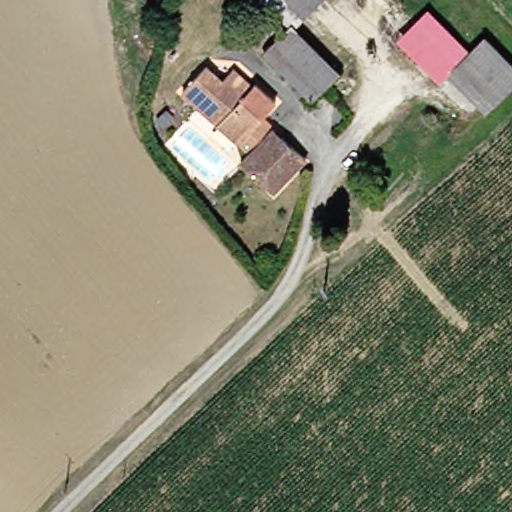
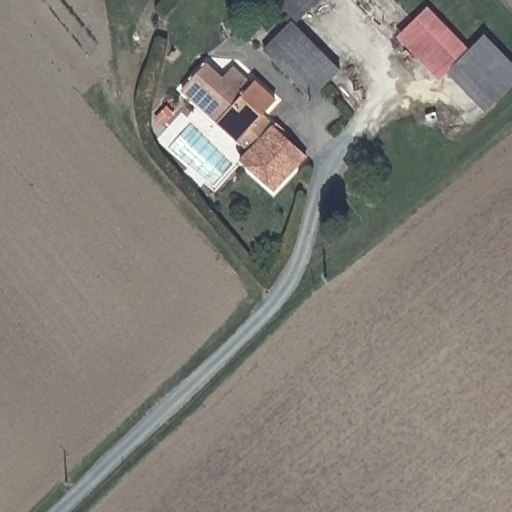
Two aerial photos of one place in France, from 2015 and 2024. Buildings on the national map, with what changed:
unchanged [(275,0),(330,0),(298,24),(275,0)]
unchanged [(448,79),(410,39),(437,12),(477,48),(455,71),(448,79)]
unchanged [(343,73),(312,102),(268,53),(298,24),(343,73)]
unchanged [(455,71),(477,48),(490,33),(512,54),(512,88),(502,99),(493,109),(486,101),(455,71)]
unchanged [(286,106),(273,119),(313,164),(281,193),(250,160),(255,156),(190,85),(216,63),(232,79),(250,64),(286,106)]

